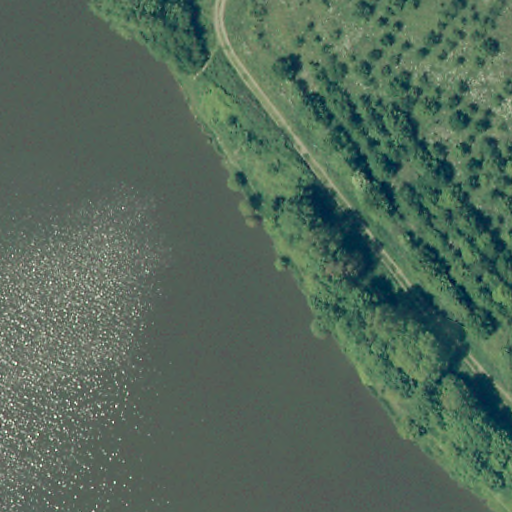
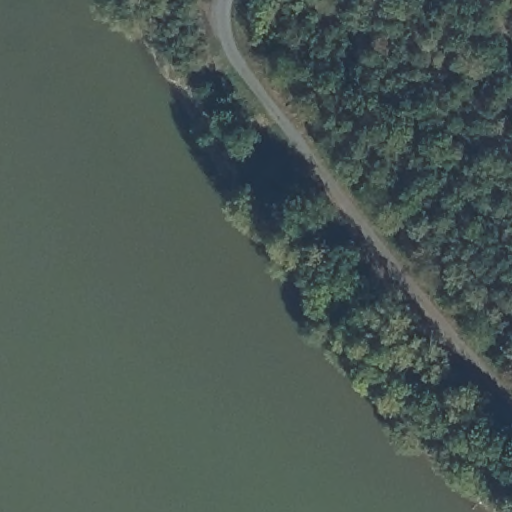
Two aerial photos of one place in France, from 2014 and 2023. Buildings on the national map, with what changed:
[]

